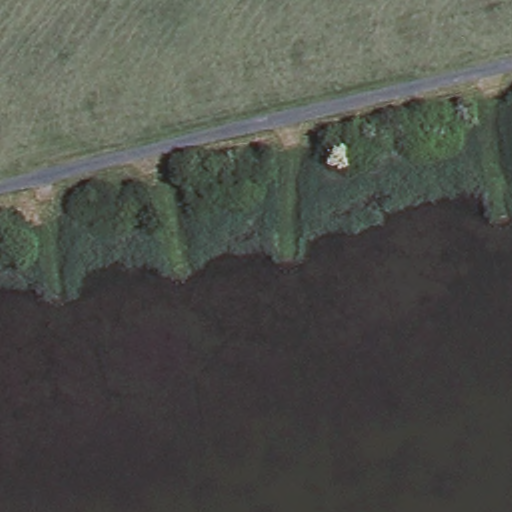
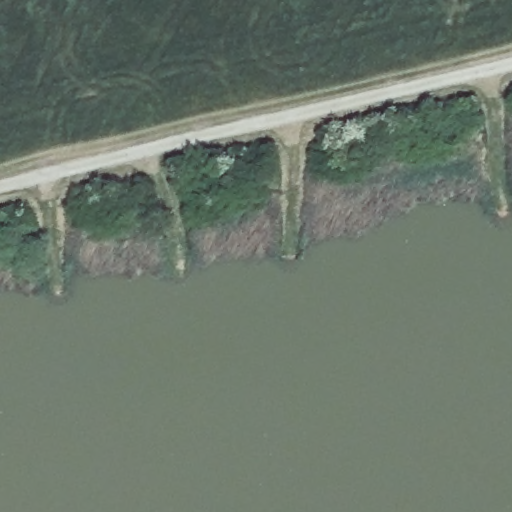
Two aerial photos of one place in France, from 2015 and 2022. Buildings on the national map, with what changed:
[]

